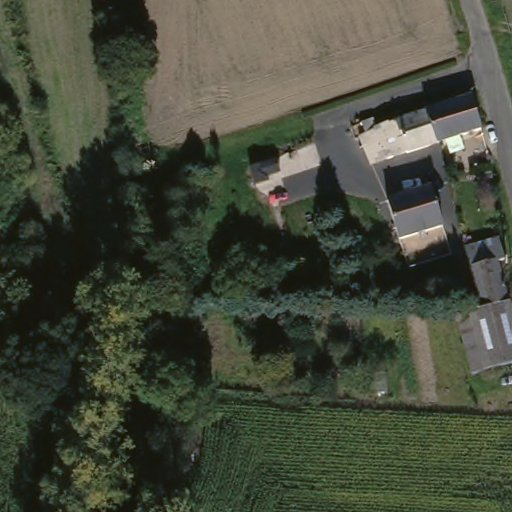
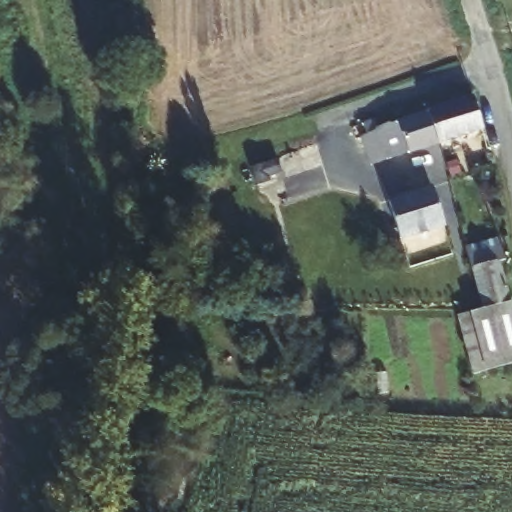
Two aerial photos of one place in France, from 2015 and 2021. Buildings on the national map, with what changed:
unchanged [(483,131),(440,142),(434,123),(431,112),(475,101),(483,131)]
unchanged [(434,123),(440,142),(372,165),(361,133),(431,112),(434,123)]
unchanged [(389,201),(430,187),(443,229),(403,242),(389,201)]
unchanged [(475,384),(458,323),(481,317),(471,273),(465,250),(499,242),(505,267),(501,267),(512,310),(512,374),(475,384)]

